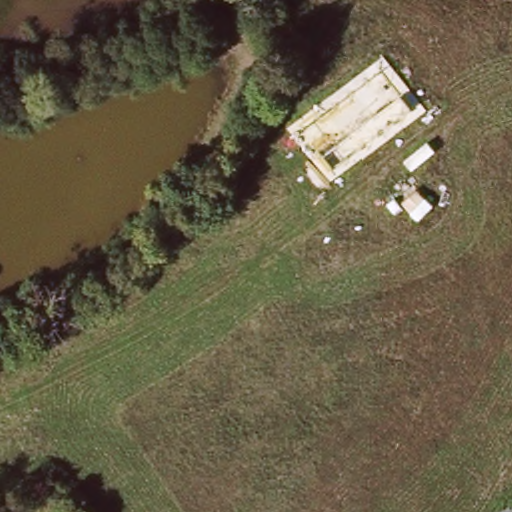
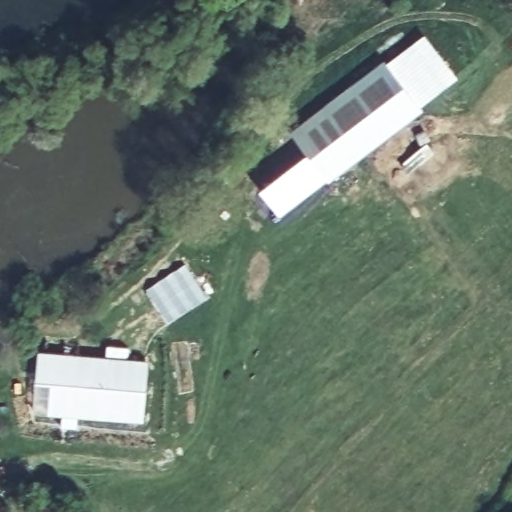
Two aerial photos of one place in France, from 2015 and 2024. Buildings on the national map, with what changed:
new [(424,111),(327,183),(289,131),(385,58),(424,111)]
new [(184,264),(205,297),(167,323),(144,290),(184,264)]
new [(149,361),(142,425),(32,415),(37,351),(149,361)]

